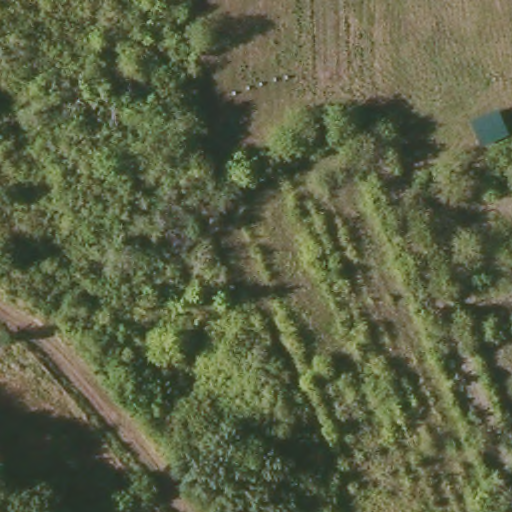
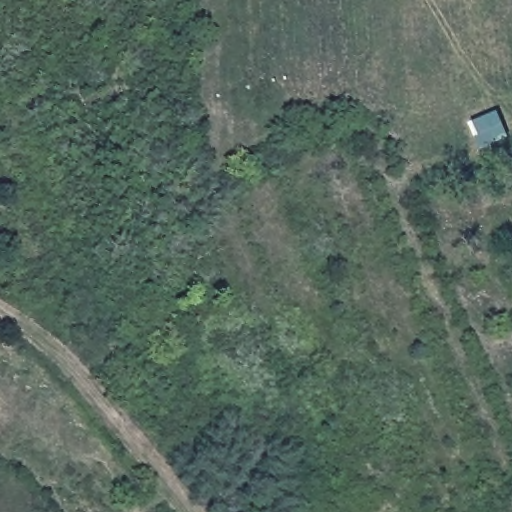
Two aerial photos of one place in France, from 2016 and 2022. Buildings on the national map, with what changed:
unchanged [(471,121),(500,109),(510,135),(482,148),(471,121)]

